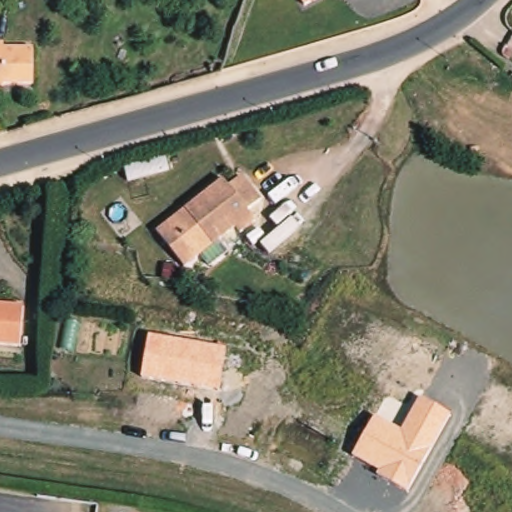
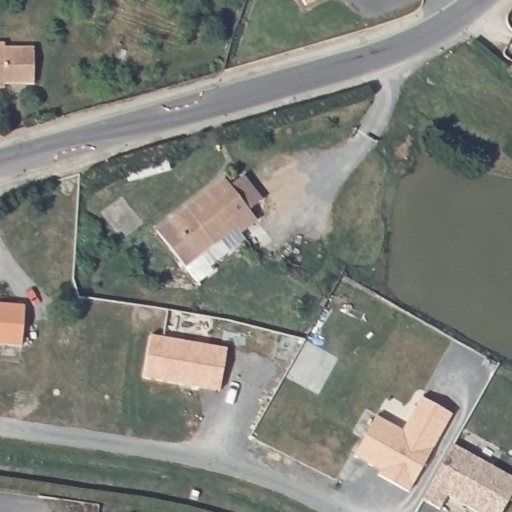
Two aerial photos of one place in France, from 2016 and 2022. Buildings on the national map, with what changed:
unchanged [(308,7),(304,0),(322,0),(308,7)]
unchanged [(13,49),(40,50),(39,86),(11,85),(11,91),(0,91),(0,45),(13,45),(13,49)]
unchanged [(225,63),(222,74),(207,79),(213,62),(225,63)]
unchanged [(237,193),(253,181),(270,203),(255,214),(263,224),(247,237),(242,231),(188,273),(158,234),(227,180),(237,193)]
unchanged [(22,346),(0,344),(0,306),(24,307),(22,346)]
unchanged [(225,348),(217,391),(139,378),(148,335),(225,348)]
unchanged [(449,413),(407,492),(376,475),(378,471),(351,456),(374,415),(402,430),(418,397),(449,413)]
new [(512,481),(512,505),(508,512),(473,512),(451,499),(443,512),(442,512),(426,502),(458,449),(512,481)]

